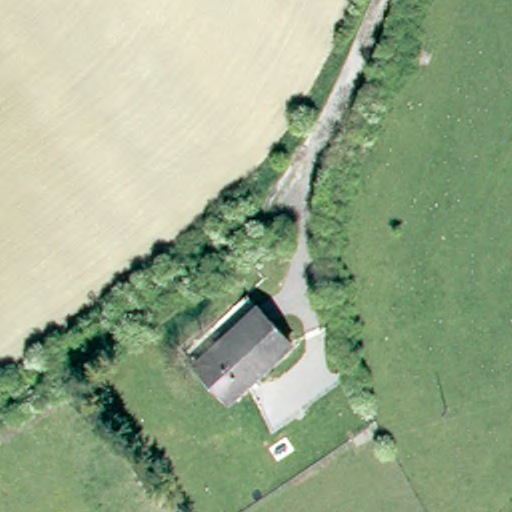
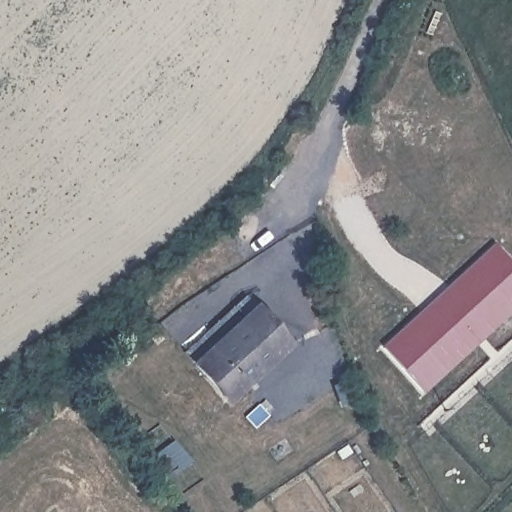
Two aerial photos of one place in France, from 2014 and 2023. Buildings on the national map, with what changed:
new [(425,393),(382,347),(495,243),(512,262),(512,313),(425,393)]
unchanged [(291,345),(228,401),(196,364),(258,308),(291,345)]

